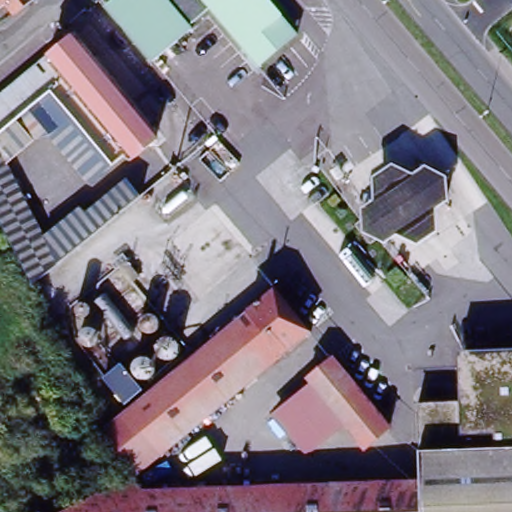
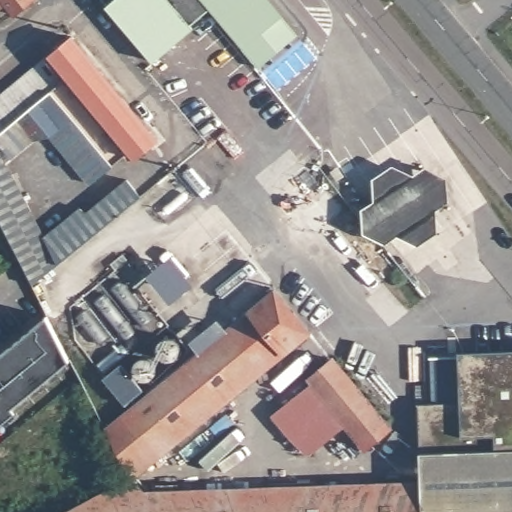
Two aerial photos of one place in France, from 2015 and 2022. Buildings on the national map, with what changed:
unchanged [(5,1),(0,5),(0,0),(29,0),(14,13),(5,1)]
unchanged [(264,0),(270,8),(295,38),(261,65),(256,69),(226,31),(211,14),(191,31),(192,31),(185,36),(152,64),(129,36),(124,30),(110,14),(104,6),(111,0),(264,0)]
unchanged [(74,32),(163,141),(113,169),(51,95),(0,138),(0,97),(74,32)]
unchanged [(41,237),(58,270),(33,291),(0,228),(0,156),(41,237)]
unchanged [(391,165),(412,174),(426,165),(446,175),(446,201),(436,207),(435,232),(418,244),(394,236),(386,240),(364,234),(362,211),(374,202),(375,178),(391,165)]
unchanged [(41,237),(78,208),(82,213),(124,178),(141,200),(58,270),(41,237)]
unchanged [(122,267),(129,261),(143,277),(136,284),(122,267)]
unchanged [(117,288),(116,288),(115,287),(114,286),(113,286),(113,285),(112,285),(112,284),(112,283),(112,282),(111,282),(111,281),(111,280),(112,279),(112,278),(112,277),(113,276),(114,275),(115,274),(116,274),(117,273),(118,273),(119,273),(120,273),(121,273),(122,274),(123,274),(123,275),(124,275),(125,276),(126,277),(126,278),(126,279),(127,280),(127,281),(127,282),(126,282),(126,283),(126,284),(126,285),(125,285),(125,286),(124,286),(123,287),(122,288),(121,288),(120,288),(119,288),(118,288),(117,288)]
unchanged [(110,427),(278,288),(279,287),(315,331),(135,476),(110,427)]
unchanged [(107,301),(106,302),(105,302),(105,303),(104,303),(103,303),(102,303),(101,304),(101,303),(100,303),(99,303),(98,303),(97,302),(96,302),(96,301),(95,300),(94,299),(94,298),(94,297),(94,296),(94,295),(94,294),(94,293),(95,292),(95,291),(96,291),(96,290),(97,290),(97,289),(98,289),(99,288),(100,288),(101,288),(102,288),(103,288),(104,288),(104,289),(105,289),(106,289),(106,290),(107,291),(108,291),(108,292),(108,293),(109,293),(109,294),(109,295),(109,296),(109,297),(109,298),(108,299),(108,300),(107,301)]
unchanged [(130,310),(129,309),(128,309),(127,308),(126,308),(125,307),(124,306),(124,305),(123,304),(123,303),(123,302),(122,301),(122,300),(122,299),(122,298),(123,297),(123,296),(123,295),(124,294),(124,293),(125,293),(126,292),(127,291),(128,291),(129,290),(130,290),(131,290),(132,290),(133,290),(134,290),(135,290),(136,291),(137,291),(138,291),(139,292),(139,293),(140,294),(141,294),(141,295),(142,296),(142,297),(142,298),(142,299),(142,300),(142,302),(142,303),(142,304),(141,304),(141,305),(140,306),(139,307),(138,308),(137,309),(136,309),(135,310),(134,310),(133,310),(132,310),(131,310),(130,310)]
unchanged [(90,315),(89,316),(88,316),(88,317),(87,317),(86,317),(85,317),(84,317),(83,317),(82,317),(81,317),(80,316),(79,316),(79,315),(78,315),(78,314),(77,313),(77,312),(77,311),(76,310),(76,309),(77,308),(77,307),(77,306),(78,305),(79,304),(80,303),(81,303),(82,302),(83,302),(84,302),(85,302),(86,302),(87,302),(88,303),(89,303),(89,304),(90,304),(90,305),(91,306),(92,307),(92,308),(92,309),(92,310),(92,311),(92,312),(91,313),(91,314),(90,315)]
unchanged [(113,328),(112,328),(111,328),(110,328),(109,328),(108,328),(107,328),(106,327),(105,327),(105,326),(104,326),(103,325),(102,324),(102,323),(101,322),(101,321),(101,320),(101,319),(101,318),(101,317),(101,316),(101,315),(101,314),(102,313),(103,312),(104,311),(105,310),(106,310),(107,309),(108,309),(109,309),(110,309),(111,309),(112,309),(113,309),(114,309),(115,309),(116,310),(117,311),(118,312),(119,313),(119,314),(120,315),(120,316),(120,318),(120,319),(120,320),(120,321),(120,322),(119,323),(118,324),(118,325),(117,326),(116,326),(115,327),(114,327),(113,328)]
unchanged [(145,331),(144,330),(143,329),(143,328),(142,327),(141,326),(141,325),(141,324),(141,322),(141,321),(141,320),(141,319),(141,318),(142,317),(143,316),(144,315),(145,314),(146,314),(147,313),(148,313),(150,312),(151,312),(152,312),(153,312),(154,313),(155,313),(156,314),(157,315),(158,315),(159,316),(159,317),(160,318),(160,319),(161,320),(161,321),(161,322),(161,323),(161,324),(160,325),(160,326),(160,327),(159,328),(158,329),(158,330),(157,330),(156,331),(155,331),(154,332),(153,332),(152,332),(151,332),(150,332),(149,332),(148,332),(147,332),(146,331),(145,331)]
new [(41,317),(68,356),(0,418),(0,345),(41,317)]
unchanged [(95,345),(94,345),(93,346),(92,346),(91,346),(90,346),(89,346),(88,346),(87,346),(86,346),(85,345),(84,345),(83,344),(82,343),(81,342),(80,341),(80,340),(80,339),(80,338),(79,337),(80,336),(80,335),(80,334),(80,333),(81,332),(81,331),(82,330),(83,329),(83,328),(84,328),(85,327),(86,327),(87,327),(88,327),(89,326),(90,327),(91,327),(92,327),(93,327),(94,328),(95,328),(96,329),(97,330),(98,331),(98,332),(99,333),(99,334),(99,335),(99,336),(99,337),(99,338),(99,339),(99,340),(98,341),(98,342),(97,343),(96,344),(95,344),(95,345)]
unchanged [(123,332),(124,332),(125,331),(127,330),(128,330),(129,330),(130,330),(131,330),(132,330),(133,331),(134,331),(135,332),(136,333),(137,334),(138,334),(138,335),(139,336),(139,337),(139,338),(139,339),(139,340),(139,341),(139,342),(139,343),(138,344),(138,345),(137,346),(137,347),(136,348),(135,348),(134,349),(133,349),(132,350),(131,350),(130,350),(129,350),(128,350),(127,350),(126,349),(125,349),(124,349),(123,348),(122,347),(121,346),(120,345),(120,344),(120,343),(119,342),(119,341),(119,340),(119,339),(120,338),(120,337),(120,336),(121,335),(121,334),(122,333),(123,332)]
unchanged [(160,356),(159,355),(159,354),(158,352),(158,351),(158,350),(158,349),(158,348),(158,346),(158,345),(159,344),(159,343),(160,342),(161,341),(162,340),(163,339),(164,339),(165,338),(166,338),(167,337),(169,337),(170,337),(171,337),(172,337),(174,338),(175,338),(176,339),(177,339),(178,340),(179,341),(179,342),(180,343),(181,344),(181,345),(181,347),(182,348),(182,349),(182,350),(181,352),(181,353),(181,354),(180,355),(179,356),(178,357),(178,358),(177,359),(175,359),(174,360),(173,360),(172,361),(171,361),(169,361),(168,361),(167,361),(166,360),(165,360),(164,359),(163,359),(162,358),(161,357),(160,356)]
unchanged [(423,421),(423,403),(469,401),(468,356),(512,355),(512,512),(498,512),(491,503),(423,421)]
unchanged [(142,358),(143,357),(145,357),(146,357),(147,357),(148,357),(150,357),(151,358),(152,358),(153,359),(154,360),(155,361),(156,362),(156,363),(157,364),(157,365),(158,366),(158,368),(158,369),(158,370),(158,371),(157,373),(157,374),(156,375),(156,376),(155,377),(154,378),(153,379),(152,379),(151,380),(150,380),(149,381),(147,381),(146,381),(145,381),(144,381),(142,380),(141,380),(140,379),(139,379),(138,378),(137,377),(136,376),(136,375),(135,374),(135,373),(134,372),(134,370),(134,369),(134,368),(134,367),(134,365),(135,364),(136,363),(136,362),(137,361),(138,360),(139,359),(140,359),(141,358),(142,358)]
unchanged [(311,382),(307,378),(332,357),(388,427),(365,447),(344,422),(311,382)]
unchanged [(344,422),(308,451),(292,432),(290,433),(273,413),(311,382),(344,422)]
unchanged [(424,481),(423,421),(491,503),(498,512),(64,512),(70,509),(135,476),(154,488),(424,481)]

